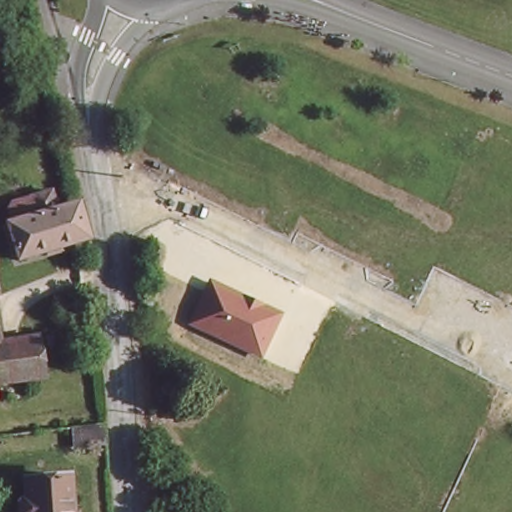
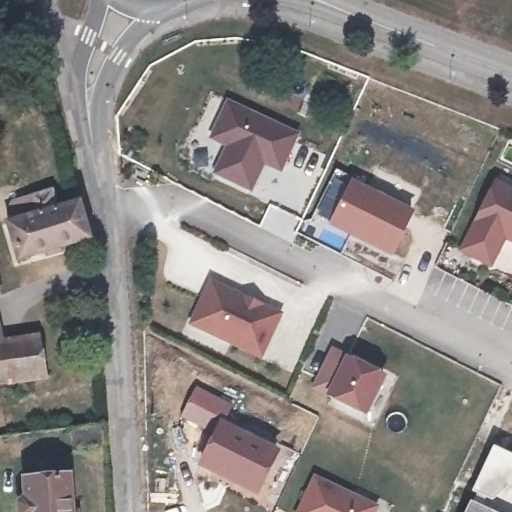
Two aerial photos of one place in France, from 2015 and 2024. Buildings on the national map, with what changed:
new [(298,133),(282,173),(266,166),(253,193),(209,174),(221,147),(207,141),(227,100),(298,133)]
new [(410,207),(389,248),(327,217),(349,175),(410,207)]
new [(460,245),(495,178),(512,187),(512,236),(503,231),(489,260),(460,245)]
unchanged [(52,208),(78,202),(87,240),(15,261),(5,223),(10,221),(6,208),(8,201),(47,190),(52,208)]
unchanged [(282,313),(262,358),(188,325),(209,278),(282,313)]
unchanged [(1,344),(37,339),(44,378),(0,384),(0,341),(1,344)]
new [(314,386),(332,349),(382,374),(364,410),(314,386)]
new [(275,441),(255,480),(199,451),(218,411),(275,441)]
new [(512,454),(512,506),(495,499),(491,502),(470,491),(492,444),(512,454)]
new [(371,512),(300,512),(291,507),(312,465),(377,498),(371,512)]
unchanged [(21,512),(21,506),(29,499),(28,482),(68,478),(72,512),(21,512)]
new [(489,508),(496,512),(463,512),(469,499),(489,508)]
new [(512,506),(512,512),(496,512),(489,508),(495,499),(512,506)]

